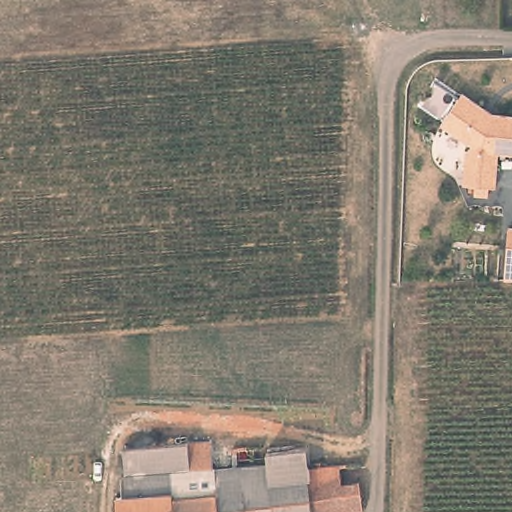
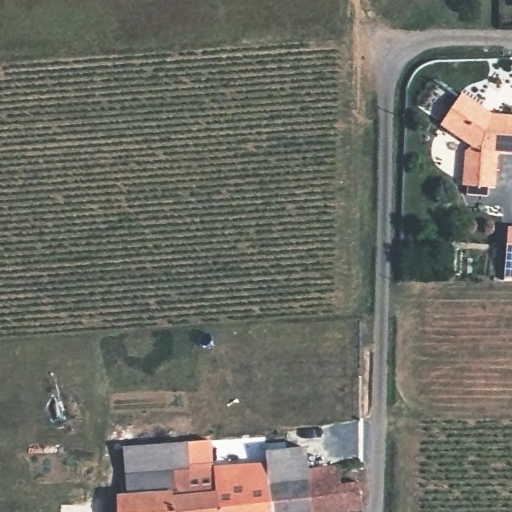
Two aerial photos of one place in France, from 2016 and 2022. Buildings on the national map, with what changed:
unchanged [(461,100),(491,120),(512,122),(512,159),(496,158),(494,192),(487,191),(486,200),(473,200),(474,190),(462,190),(465,155),(472,151),(441,130),(461,100)]
unchanged [(502,278),(507,225),(512,225),(512,278),(502,278)]
unchanged [(115,501),(125,500),(123,451),(175,447),(211,445),(213,471),(216,512),(115,512),(115,501)]
unchanged [(232,451),(267,448),(267,454),(287,452),(305,451),(306,470),(341,467),(361,466),(363,466),(365,486),(360,486),(356,487),(360,512),(216,512),(213,471),(233,470),(232,451)]

